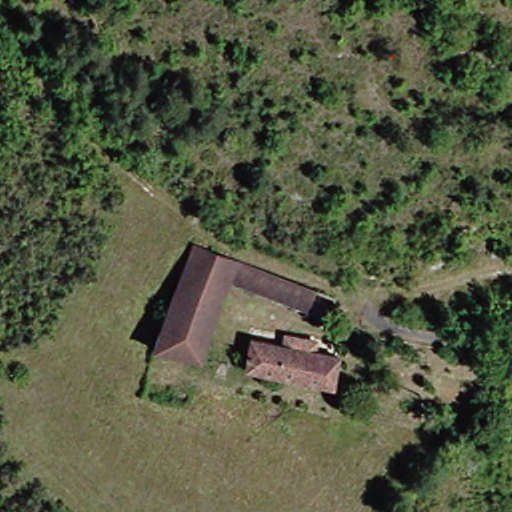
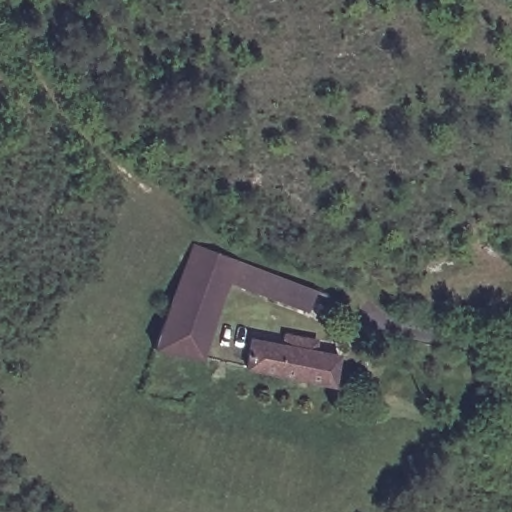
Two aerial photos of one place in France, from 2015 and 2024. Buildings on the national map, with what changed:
unchanged [(143,352),(185,246),(233,265),(311,294),(302,315),(222,286),(193,358),(143,352)]
unchanged [(235,371),(243,339),(272,344),(276,333),(312,342),(310,350),(334,356),(327,387),(235,371)]

